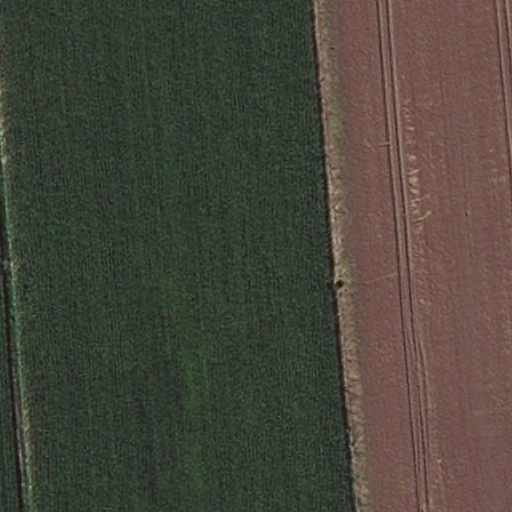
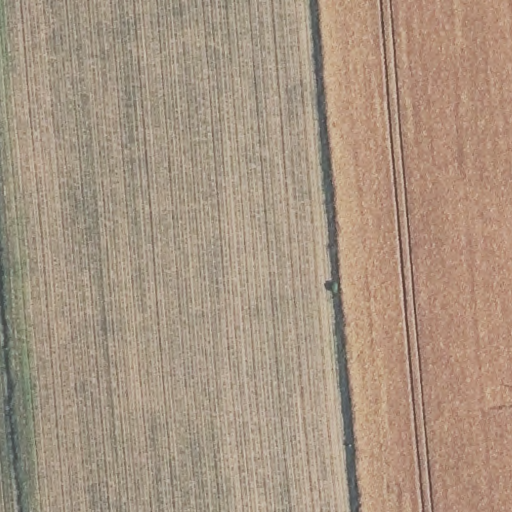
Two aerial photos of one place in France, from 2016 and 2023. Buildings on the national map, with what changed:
[]

